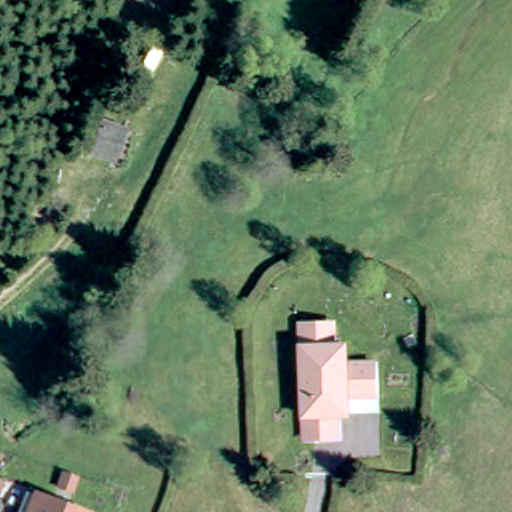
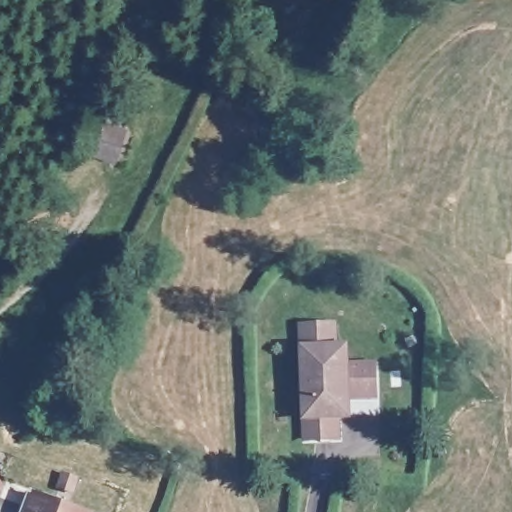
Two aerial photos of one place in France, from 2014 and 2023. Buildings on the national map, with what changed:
unchanged [(110,126),(130,134),(121,155),(101,147),(110,126)]
unchanged [(340,413),(338,435),(305,434),(306,327),(340,328),(340,350),(352,350),(351,365),(380,366),(379,398),(352,397),(352,413),(340,413)]
unchanged [(0,475),(7,489),(0,494),(0,475)]
unchanged [(85,512),(84,512),(26,512),(33,493),(85,512)]

